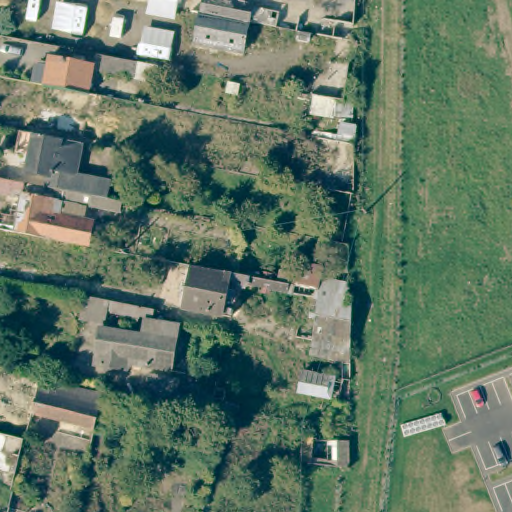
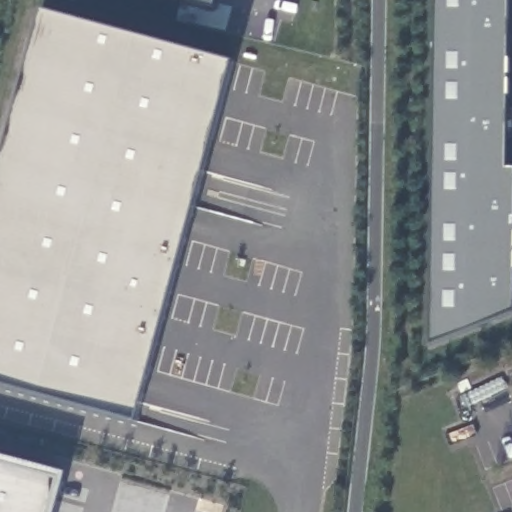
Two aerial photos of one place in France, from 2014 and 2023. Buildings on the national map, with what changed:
new [(178,0),(218,0),(216,10),(178,0)]
demolished [(232,0),(302,12),(299,31),(248,22),(199,13),(201,0),(232,0)]
demolished [(341,44),(315,40),(315,39),(321,0),(348,0),(341,44)]
new [(512,169),(512,314),(433,344),(437,0),(508,0),(506,169),(512,169)]
new [(137,422),(0,385),(0,167),(42,11),(235,62),(137,422)]
demolished [(248,22),(244,48),(194,39),(199,13),(248,22)]
demolished [(45,57),(83,64),(78,93),(40,86),(45,57)]
demolished [(131,67),(129,82),(95,76),(98,61),(131,67)]
demolished [(348,70),(344,104),(307,98),(310,80),(323,82),(325,67),(348,70)]
demolished [(78,93),(98,97),(91,137),(33,126),(34,122),(40,86),(78,93)]
demolished [(327,194),(337,146),(339,133),(355,136),(354,149),(354,198),(347,197),(327,194)]
demolished [(45,189),(46,177),(25,173),(32,135),(34,136),(83,145),(79,175),(111,181),(107,200),(120,202),(117,214),(61,203),(58,217),(57,225),(57,226),(40,222),(37,238),(37,239),(9,233),(3,232),(0,232),(0,215),(6,216),(8,204),(16,206),(17,200),(0,196),(0,180),(29,185),(45,189)]
demolished [(90,222),(86,247),(85,247),(37,239),(37,238),(40,222),(57,226),(57,225),(58,217),(90,222)]
demolished [(236,275),(227,312),(181,301),(189,265),(236,275)]
demolished [(312,340),(316,302),(275,294),(276,282),(352,296),(351,347),(312,340)]
demolished [(86,304),(140,313),(138,324),(105,317),(103,329),(82,326),(86,304)]
demolished [(177,332),(170,375),(136,368),(125,374),(94,368),(101,333),(141,341),(144,326),(177,332)]
demolished [(43,372),(34,406),(31,416),(30,421),(0,414),(0,362),(43,372)]
demolished [(344,396),(297,385),(304,362),(349,372),(344,396)]
demolished [(105,387),(93,435),(57,427),(61,412),(34,406),(43,372),(105,387)]
demolished [(7,512),(0,512),(0,428),(22,433),(23,434),(13,475),(15,481),(7,512)]
new [(57,512),(0,512),(0,457),(66,475),(57,512)]
demolished [(32,510),(31,512),(8,512),(10,505),(32,510)]

